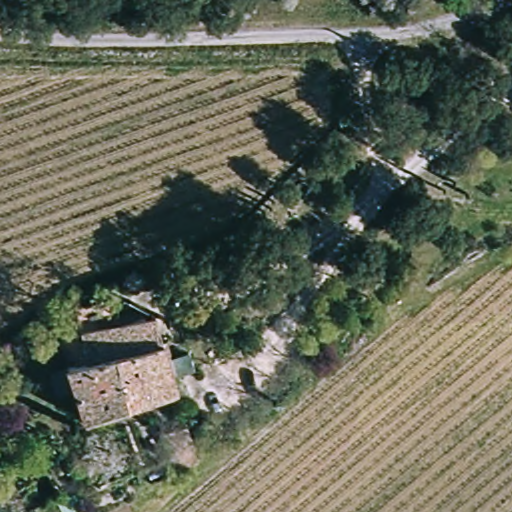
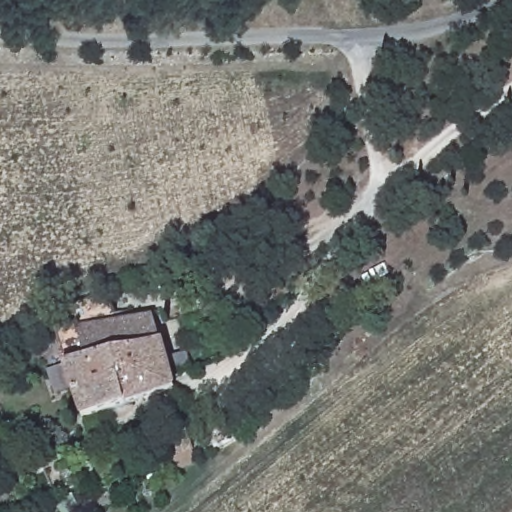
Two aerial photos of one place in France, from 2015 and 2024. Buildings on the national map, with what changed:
unchanged [(177,391),(84,423),(65,370),(83,364),(73,335),(149,309),(160,338),(161,341),(177,389),(177,391)]

